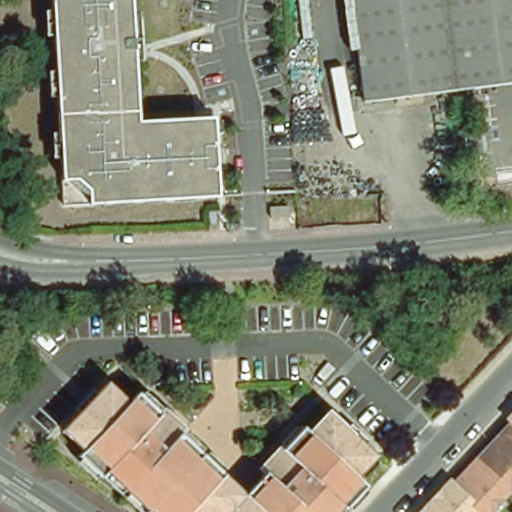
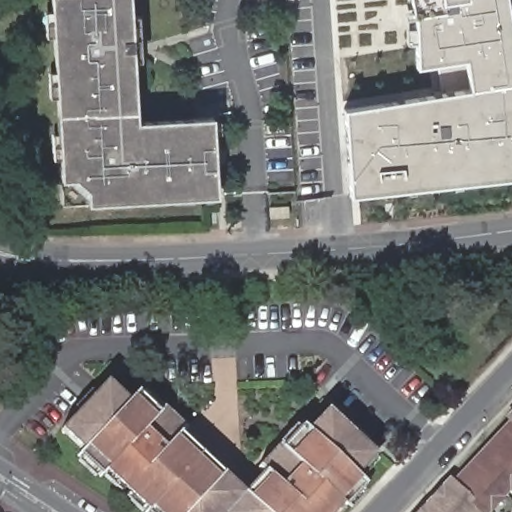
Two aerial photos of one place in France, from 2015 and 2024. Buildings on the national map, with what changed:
unchanged [(211,118),(220,198),(61,207),(50,0),(135,0),(142,120),(211,118)]
demolished [(350,0),(512,0),(512,79),(367,103),(350,0)]
new [(473,90),(472,63),(425,68),(423,44),(416,44),(415,30),(422,30),(423,18),(413,18),(413,14),(422,14),(420,0),(512,0),(512,180),(357,196),(351,110),(473,90)]
unchanged [(142,509),(140,506),(142,503),(141,502),(136,507),(120,491),(125,487),(120,483),(116,488),(99,471),(102,466),(101,465),(96,470),(94,468),(90,472),(73,456),(77,452),(76,450),(80,445),(60,426),(77,406),(74,402),(90,386),(93,390),(105,378),(126,398),(135,389),(137,391),(138,392),(142,387),(159,403),(155,407),(157,410),(162,404),(184,425),(179,429),(181,431),(185,427),(197,440),(195,444),(199,447),(202,444),(220,460),(216,464),(237,483),(258,462),(254,458),(275,436),(277,439),(279,437),(275,433),(292,416),(296,420),(298,418),(302,421),(322,401),(341,420),(346,415),(362,430),(357,436),(369,447),(349,468),(358,477),(356,480),(361,484),(345,502),(340,498),(338,500),(335,498),(333,500),(338,505),(331,512),(220,512),(216,509),(213,512),(139,512),(142,509)]
unchanged [(470,508),(465,512),(406,512),(438,477),(441,480),(500,418),(497,415),(512,399),(512,469),(473,511),(470,508)]
unchanged [(512,506),(512,512),(507,512),(512,506)]

